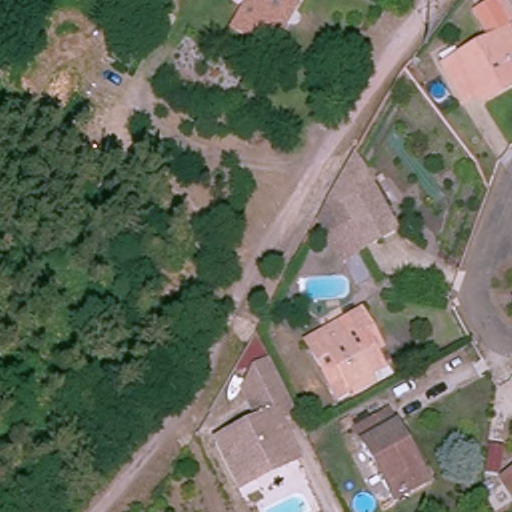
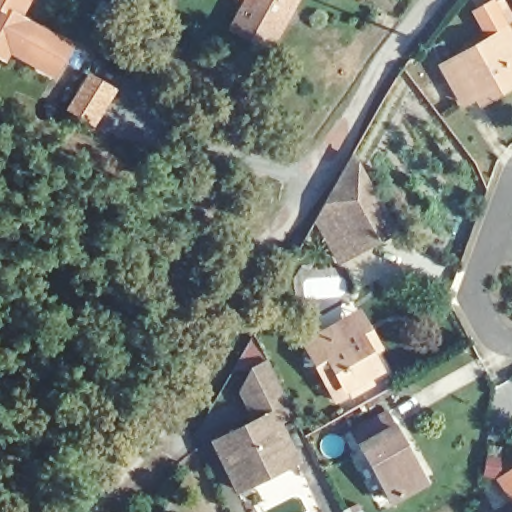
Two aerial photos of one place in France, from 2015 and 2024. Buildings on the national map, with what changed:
new [(22,16),(72,44),(53,77),(9,54),(6,61),(0,58),(0,0),(31,0),(22,16)]
unchanged [(232,29),(238,19),(248,0),(297,0),(273,45),(270,50),(232,29)]
unchanged [(483,96),(470,103),(451,69),(498,42),(482,15),(498,6),(512,29),(512,91),(487,105),(483,96)]
new [(94,126),(67,108),(89,73),(116,89),(94,126)]
unchanged [(335,260),(322,233),(357,172),(388,233),(335,260)]
unchanged [(349,380),(338,386),(314,343),(336,330),(368,313),(372,323),(388,350),(378,356),(388,373),(355,391),(349,380)]
unchanged [(236,489),(213,442),(256,421),(241,390),(251,370),(269,362),(280,385),(294,414),(277,421),(296,461),(280,469),(253,481),(236,489)]
unchanged [(424,482),(389,501),(351,429),(386,410),(424,482)]
unchanged [(502,441),(497,470),(484,467),(489,438),(502,441)]
unchanged [(512,474),(512,489),(505,478),(512,474)]
new [(366,501),(371,512),(343,512),(343,511),(366,501)]

